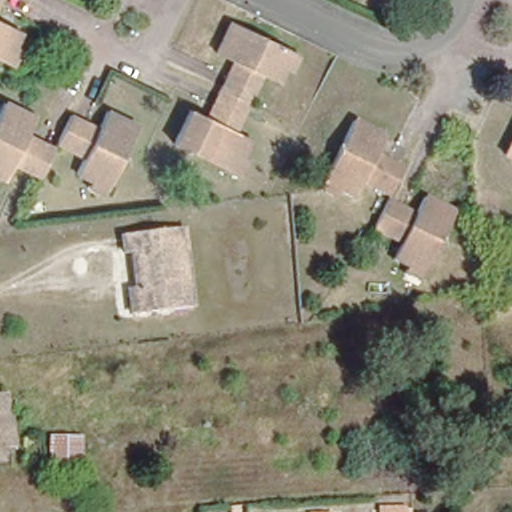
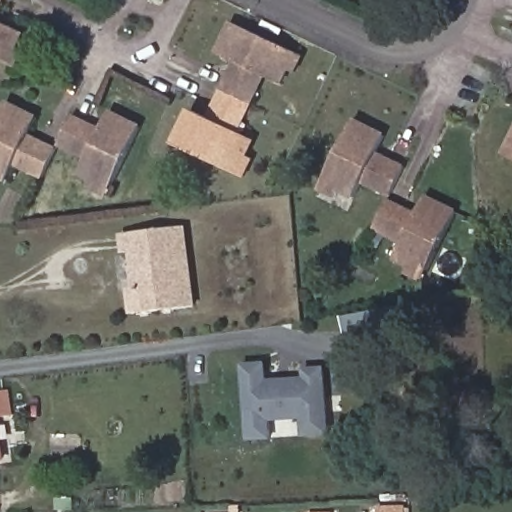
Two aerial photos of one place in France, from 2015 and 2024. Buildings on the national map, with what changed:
unchanged [(0,4),(0,0),(2,0),(0,4)]
unchanged [(249,102),(220,87),(226,74),(233,60),(216,51),(231,22),(288,50),(299,56),(292,72),(284,69),(278,81),(263,75),(256,90),(249,102)]
unchanged [(1,62),(0,62),(0,24),(18,34),(12,48),(20,52),(12,67),(1,62)]
unchanged [(230,170),(173,141),(189,109),(206,117),(211,106),(220,87),(249,102),(241,119),(236,130),(250,138),(243,155),(249,159),(241,176),(230,170)]
unchanged [(8,104),(38,120),(31,135),(41,141),(56,150),(43,177),(27,170),(16,164),(8,179),(0,175),(0,120),(8,104)]
unchanged [(91,190),(94,182),(82,175),(88,160),(74,153),(59,145),(73,116),(89,125),(101,131),(111,114),(141,129),(113,186),(108,197),(91,190)]
unchanged [(323,184),(353,126),(383,141),(375,156),(384,161),(403,170),(388,200),(373,192),(362,186),(353,203),(339,195),(336,202),(319,194),(323,184)]
unchanged [(512,139),(512,158),(504,154),(512,139)]
unchanged [(404,275),(408,270),(394,260),(401,246),(387,239),(373,231),(387,204),(402,212),(415,219),(423,200),(455,216),(427,273),(421,285),(404,275)]
unchanged [(130,310),(127,285),(139,285),(135,247),(123,247),(121,228),(164,225),(183,222),(185,243),(191,302),(130,310)]
new [(418,321),(345,335),(343,316),(415,303),(418,321)]
new [(303,368),(325,366),(330,435),(302,437),(301,420),(271,422),(272,439),(248,441),(243,363),(267,362),(268,380),(303,377),(303,368)]
unchanged [(12,438),(0,440),(0,396),(4,395),(12,438)]
unchanged [(1,448),(0,449),(0,445),(1,448)]
demolished [(427,503),(427,512),(397,512),(396,505),(427,503)]
unchanged [(407,510),(408,512),(377,512),(377,511),(407,510)]

